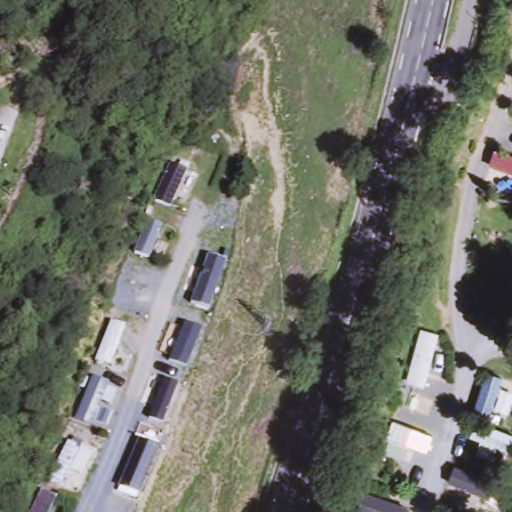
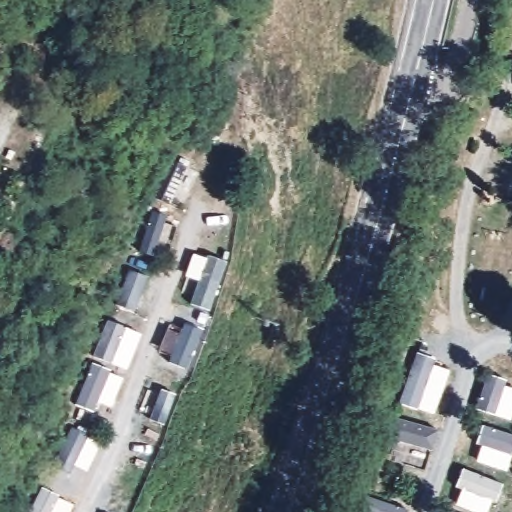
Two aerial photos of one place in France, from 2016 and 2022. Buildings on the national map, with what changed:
unchanged [(512,150),(512,174),(488,165),(494,144),(512,150)]

